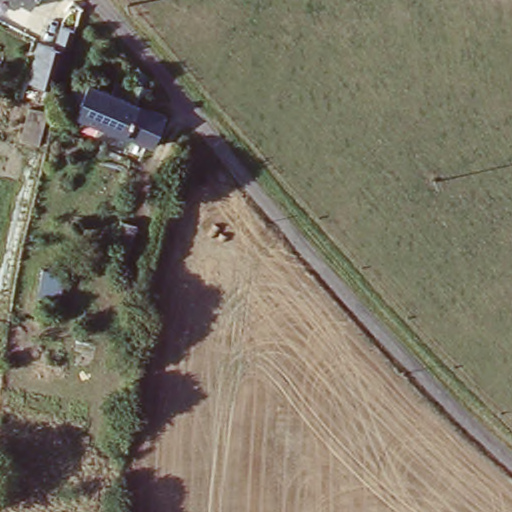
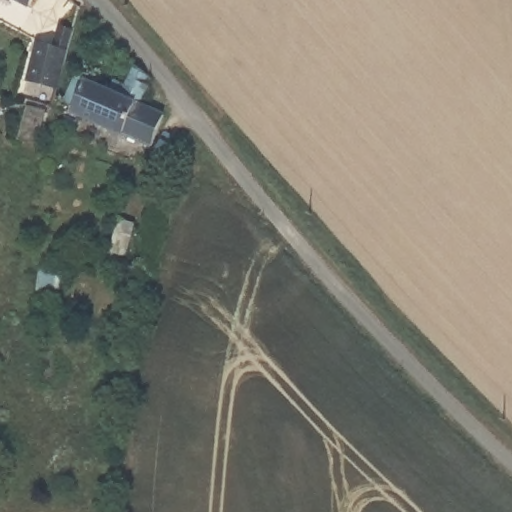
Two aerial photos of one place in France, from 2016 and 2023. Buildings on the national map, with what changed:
unchanged [(13,0),(31,0),(28,7),(13,0)]
unchanged [(59,89),(20,81),(26,40),(66,53),(59,89)]
unchanged [(146,88),(153,90),(148,108),(169,116),(156,147),(74,117),(77,108),(68,105),(77,80),(114,95),(118,84),(129,89),(136,69),(151,75),(146,88)]
unchanged [(119,220),(136,223),(124,265),(108,259),(119,220)]

